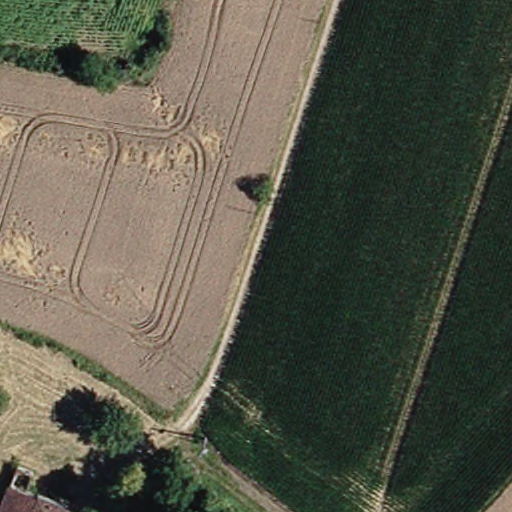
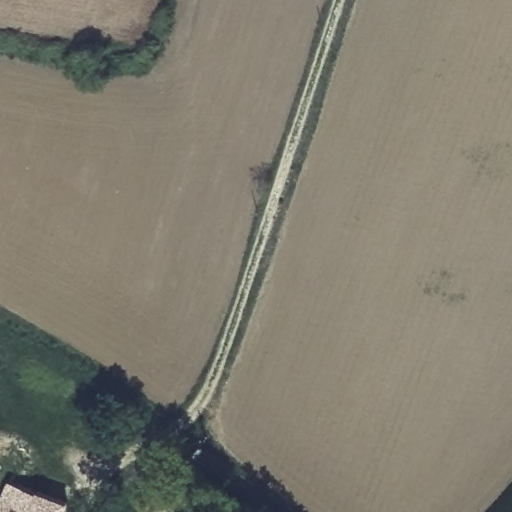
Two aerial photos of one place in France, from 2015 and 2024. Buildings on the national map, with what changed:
unchanged [(34,491),(40,493),(74,504),(71,512),(6,512),(22,467),(40,473),(34,491)]

